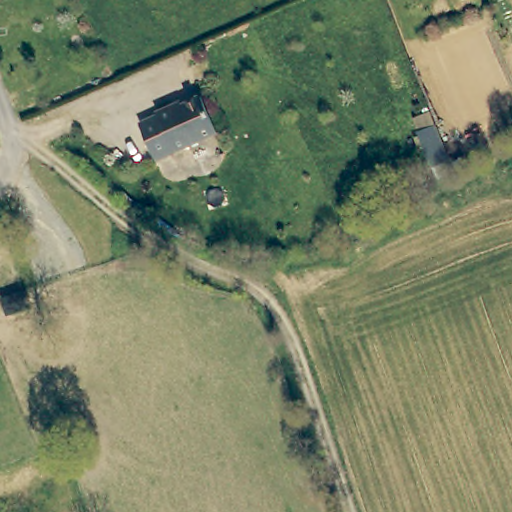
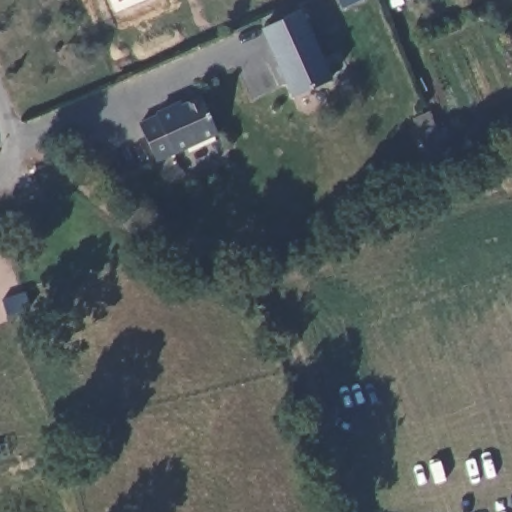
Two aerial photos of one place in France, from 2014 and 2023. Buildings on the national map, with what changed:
new [(332,79),(293,97),(261,30),(302,12),(332,79)]
unchanged [(155,116),(155,114),(171,106),(172,109),(199,96),(215,133),(155,160),(138,125),(155,116)]

